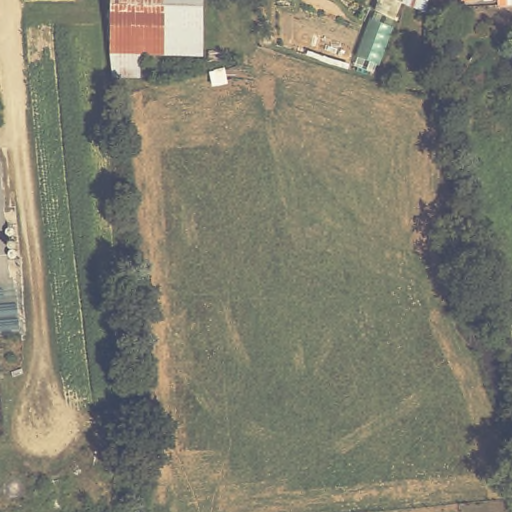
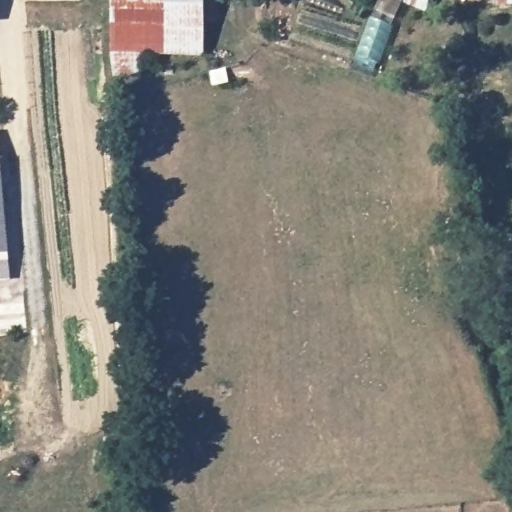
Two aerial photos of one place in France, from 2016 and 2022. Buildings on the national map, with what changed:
unchanged [(195,49),(137,47),(139,72),(115,72),(112,46),(112,18),(113,0),(196,0),(195,49)]
unchanged [(0,274),(0,161),(10,274),(0,274)]
unchanged [(512,303),(512,336),(507,336),(506,304),(512,303)]

